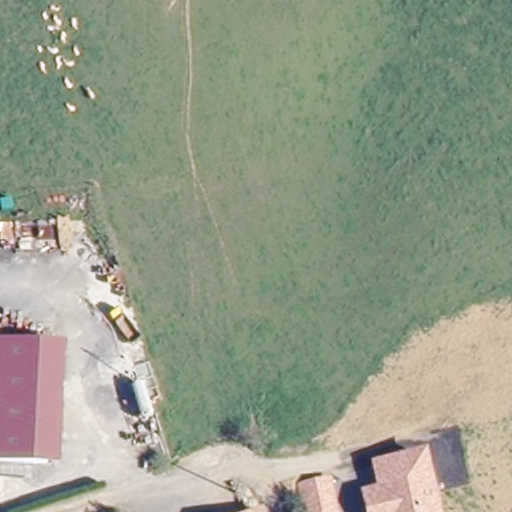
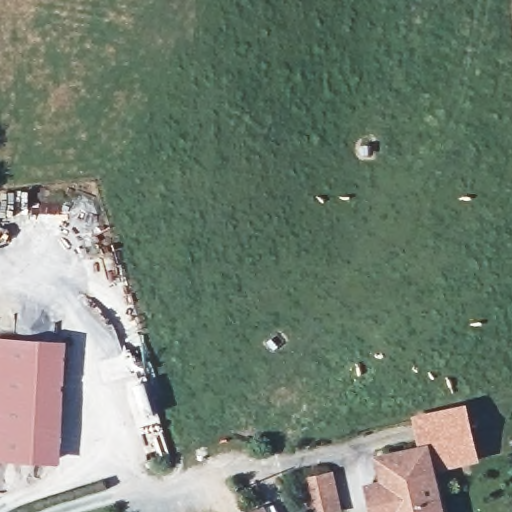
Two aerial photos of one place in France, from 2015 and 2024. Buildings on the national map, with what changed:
unchanged [(60,342),(54,462),(0,459),(0,338),(60,342)]
new [(466,402),(479,461),(435,471),(429,442),(417,445),(411,416),(466,402)]
unchanged [(429,442),(444,512),(369,512),(362,483),(377,481),(372,454),(429,442)]
unchanged [(306,512),(298,477),(332,471),(340,512),(306,512)]
unchanged [(263,512),(256,512),(262,510),(263,512)]

